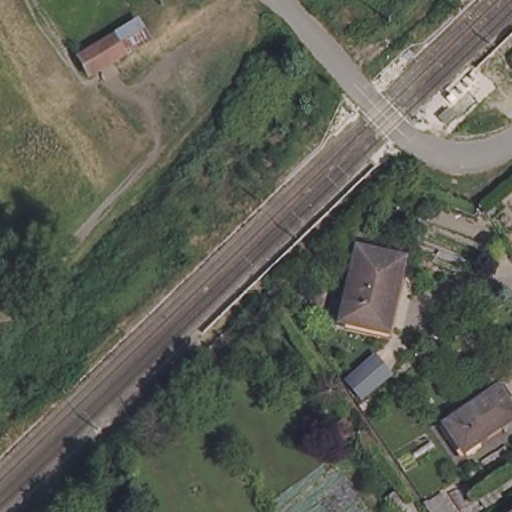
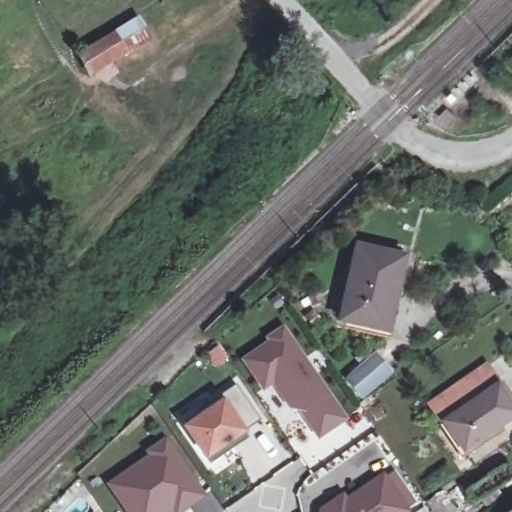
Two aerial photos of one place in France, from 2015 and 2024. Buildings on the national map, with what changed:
unchanged [(97,74),(86,55),(142,23),(152,40),(97,74)]
unchanged [(456,116),(447,124),(440,116),(447,108),(456,116)]
unchanged [(382,331),(342,321),(360,247),(405,258),(396,298),(389,332),(382,331)]
new [(303,412),(291,410),(275,385),(265,392),(243,361),(270,342),(267,338),(286,327),(350,420),(322,439),(303,412)]
unchanged [(362,398),(347,381),(376,357),(390,374),(362,398)]
new [(222,402),(218,397),(236,384),(261,421),(230,442),(234,448),(211,464),(186,427),(222,402)]
unchanged [(512,398),(512,423),(470,452),(450,423),(504,387),(512,398)]
new [(151,455),(149,453),(168,439),(209,498),(187,512),(128,512),(111,486),(151,455)]
new [(412,512),(320,512),(321,511),(345,494),(349,499),(384,474),(387,479),(397,472),(417,502),(410,509),(412,512)]
demolished [(408,499),(417,512),(397,512),(394,508),(408,499)]

